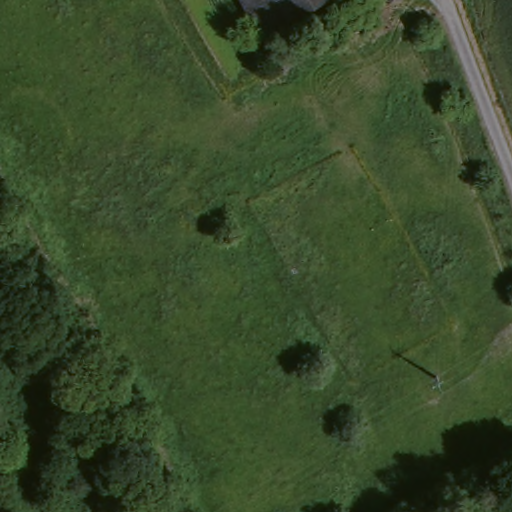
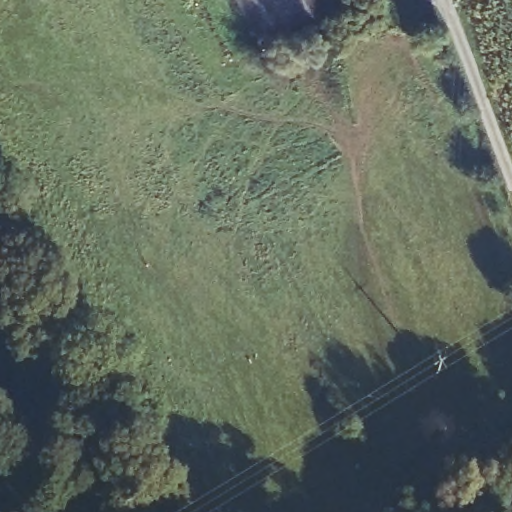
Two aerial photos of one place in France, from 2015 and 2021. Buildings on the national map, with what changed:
unchanged [(259,35),(241,0),(322,0),(259,35)]

